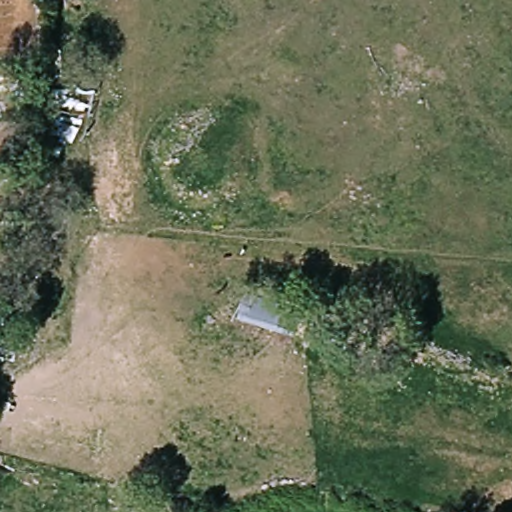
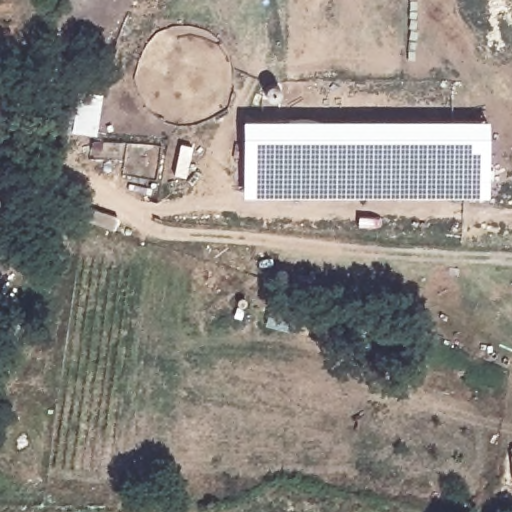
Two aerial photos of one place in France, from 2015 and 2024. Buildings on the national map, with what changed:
unchanged [(0,116),(0,73),(1,73),(7,115),(0,116)]
new [(243,119),(488,119),(488,196),(243,196),(243,119)]

